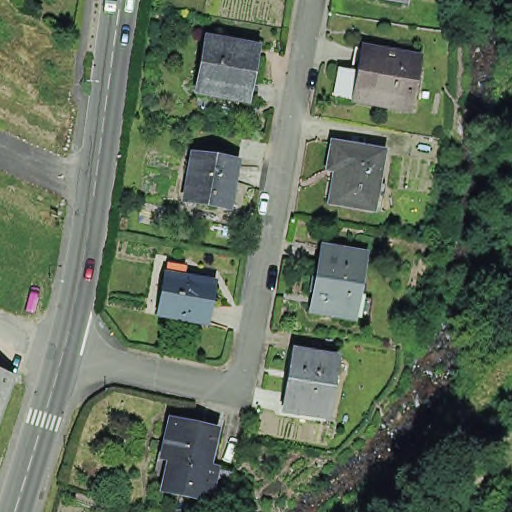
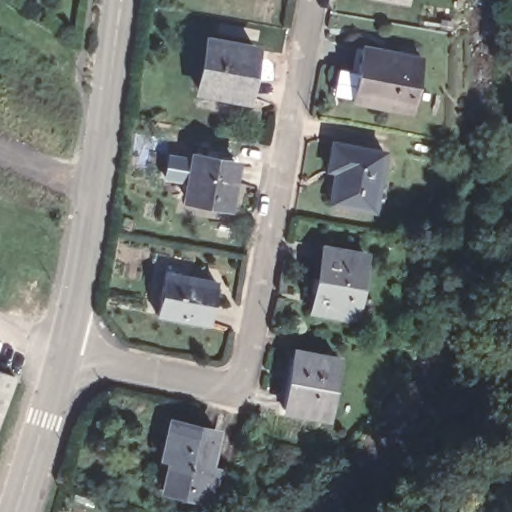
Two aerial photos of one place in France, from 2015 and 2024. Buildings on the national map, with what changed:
unchanged [(215,31),(262,41),(251,94),(203,84),(215,31)]
unchanged [(349,93),(361,40),(417,52),(405,105),(349,93)]
unchanged [(376,209),(336,200),(343,169),(332,167),(339,139),(389,150),(376,209)]
unchanged [(233,202),(191,192),(200,148),(243,157),(233,202)]
unchanged [(356,314),(314,306),(327,239),(368,247),(359,292),(377,295),(373,317),(356,314)]
unchanged [(164,319),(172,275),(221,284),(213,328),(164,319)]
unchanged [(324,418),(281,410),(293,353),(334,360),(324,418)]
unchanged [(0,413),(0,365),(14,370),(0,413)]
unchanged [(213,500),(170,489),(163,487),(164,480),(157,478),(174,415),(182,417),(223,428),(214,464),(222,466),(238,471),(230,504),(213,500)]

